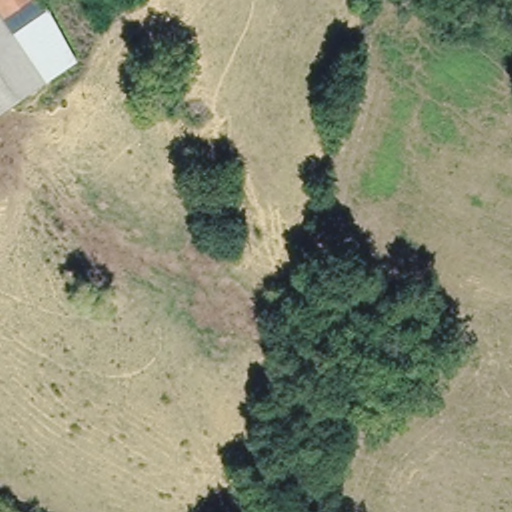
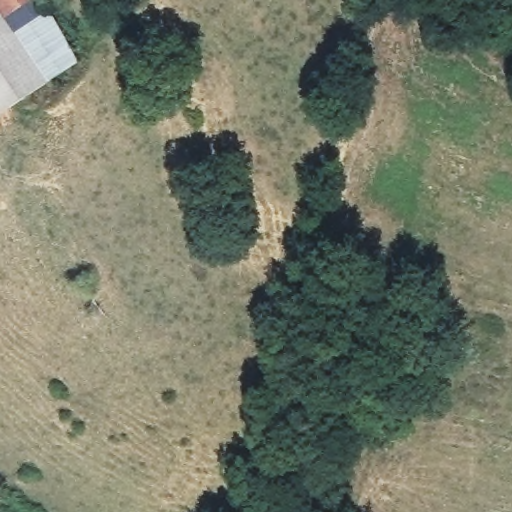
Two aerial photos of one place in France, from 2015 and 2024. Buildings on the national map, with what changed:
unchanged [(37,0),(41,4),(46,12),(79,62),(4,112),(1,113),(0,111),(0,0),(37,0)]

